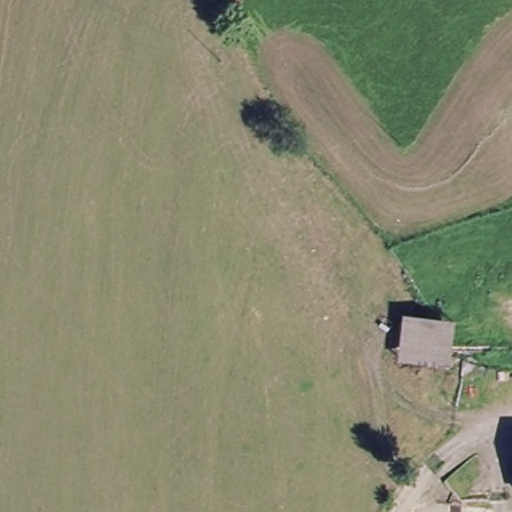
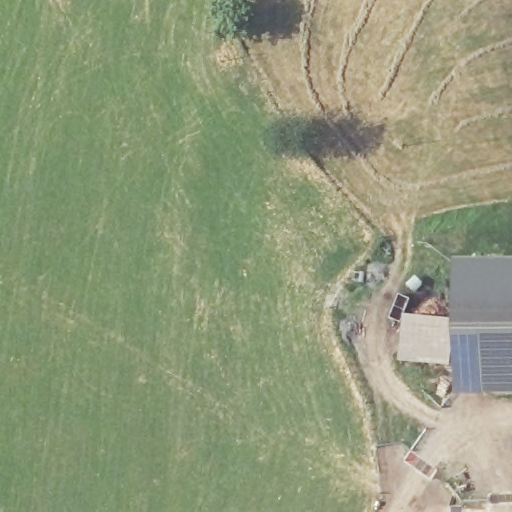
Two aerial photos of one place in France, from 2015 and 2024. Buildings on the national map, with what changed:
new [(453,387),(459,255),(512,257),(512,390),(453,387)]
new [(456,316),(448,359),(399,351),(406,307),(456,316)]
demolished [(398,364),(402,318),(452,326),(447,372),(398,364)]

